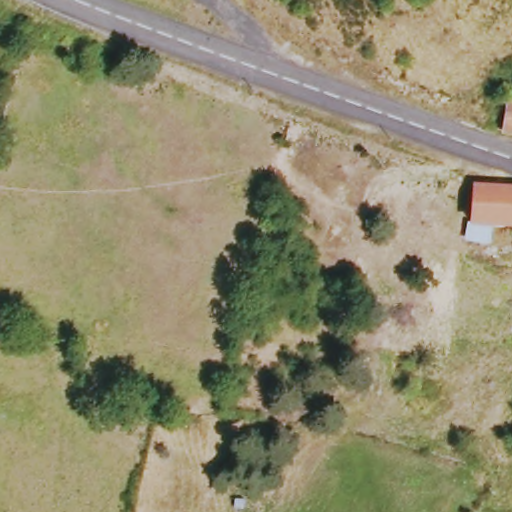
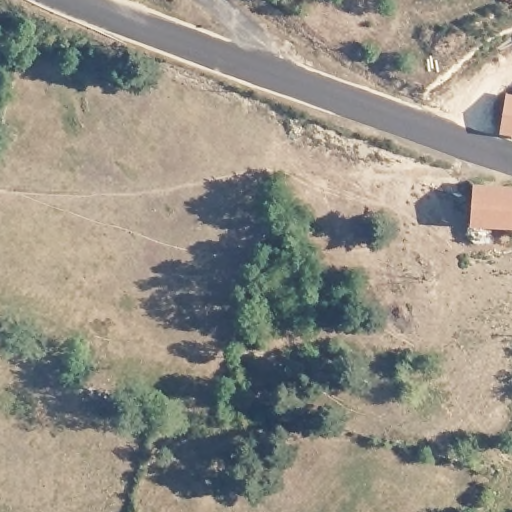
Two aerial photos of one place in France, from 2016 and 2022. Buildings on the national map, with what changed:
unchanged [(507,108),(512,108),(512,137),(502,136),(507,108)]
unchanged [(474,228),(477,193),(512,194),(512,230),(474,228)]

